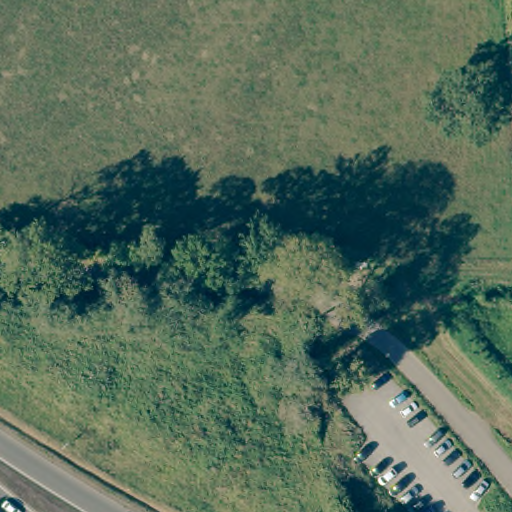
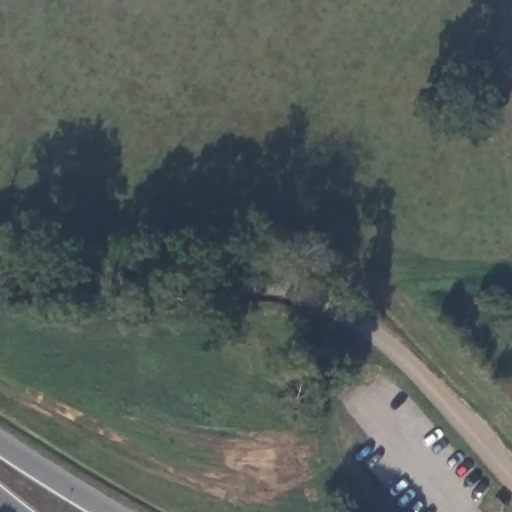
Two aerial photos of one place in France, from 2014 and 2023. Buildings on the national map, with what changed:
[]

